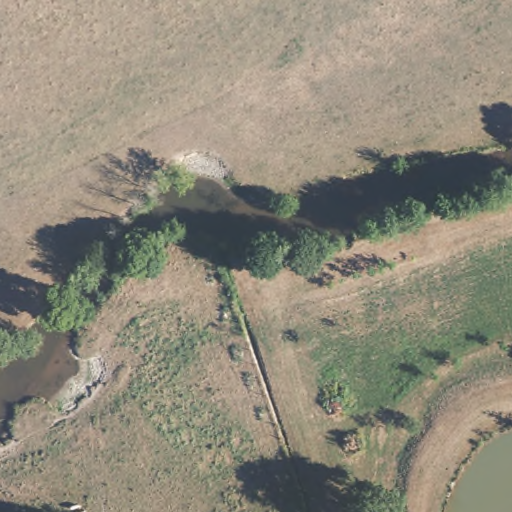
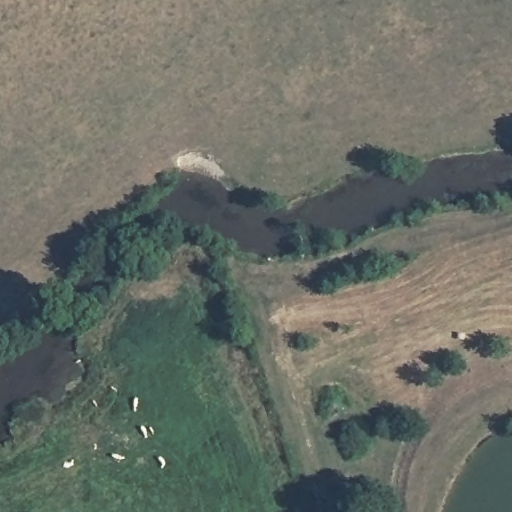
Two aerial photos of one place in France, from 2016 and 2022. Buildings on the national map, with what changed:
[]

